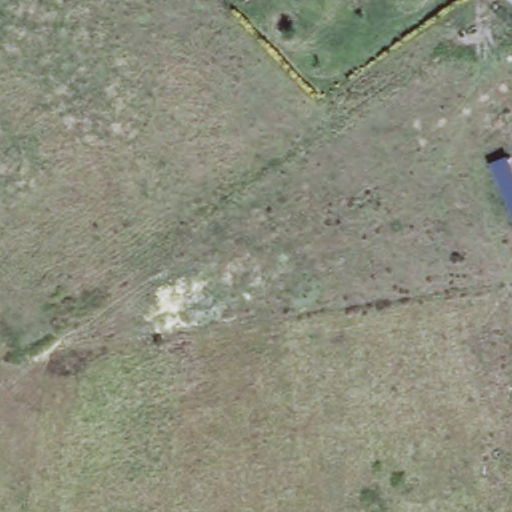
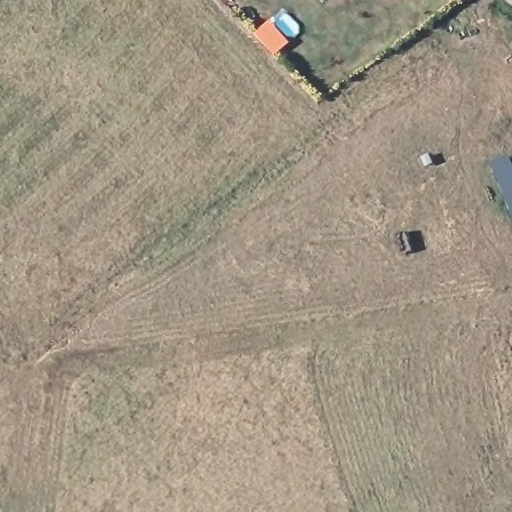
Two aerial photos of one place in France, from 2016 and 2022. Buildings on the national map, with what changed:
unchanged [(488,166),(512,156),(512,223),(511,223),(488,166)]

